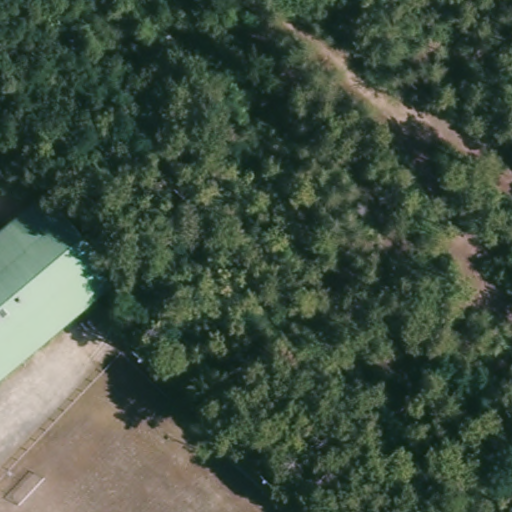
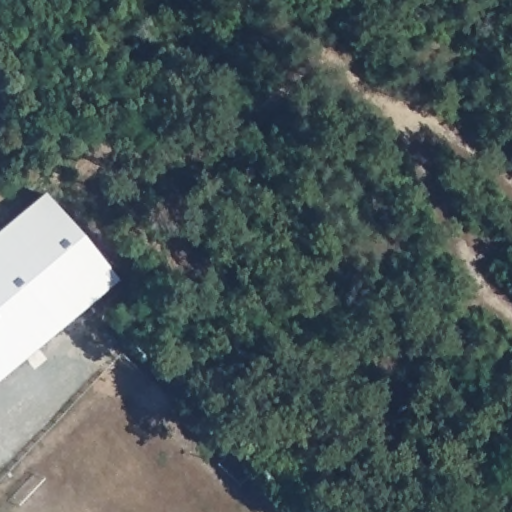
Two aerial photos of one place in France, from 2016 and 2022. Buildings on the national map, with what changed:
unchanged [(69,230),(117,287),(86,312),(0,384),(0,234),(6,229),(18,219),(43,199),(69,230)]

